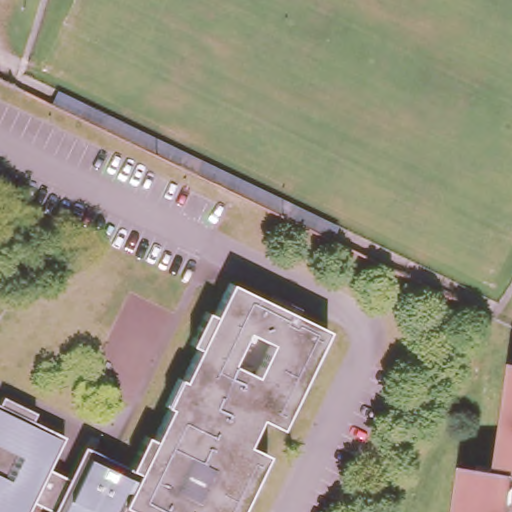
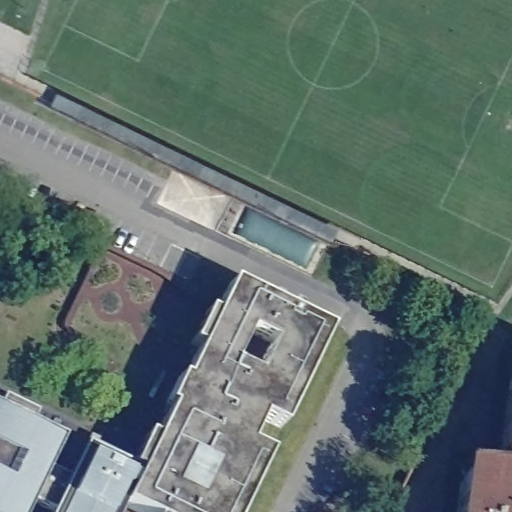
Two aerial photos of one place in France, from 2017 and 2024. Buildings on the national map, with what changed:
unchanged [(50,103),(57,90),(338,228),(332,241),(50,103)]
unchanged [(48,510),(63,477),(80,444),(131,469),(147,436),(155,440),(170,409),(165,407),(178,378),(184,380),(199,349),(190,345),(208,309),(217,312),(230,285),(327,333),(317,356),(292,408),(280,431),(260,422),(247,448),(267,457),(257,480),(241,512),(130,512),(122,508),(120,512),(47,512),(48,510)]
unchanged [(495,469),(510,359),(512,359),(512,471),(495,469)]
unchanged [(28,420),(61,435),(45,469),(63,477),(48,510),(29,501),(24,512),(0,512),(0,397),(32,412),(28,420)]
unchanged [(462,464),(495,469),(512,471),(512,490),(509,512),(455,512),(462,464)]

